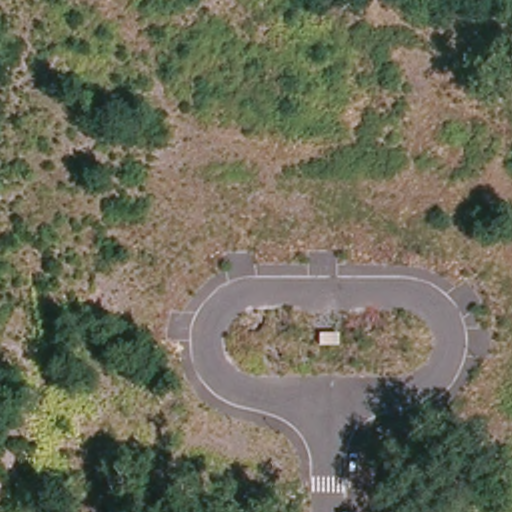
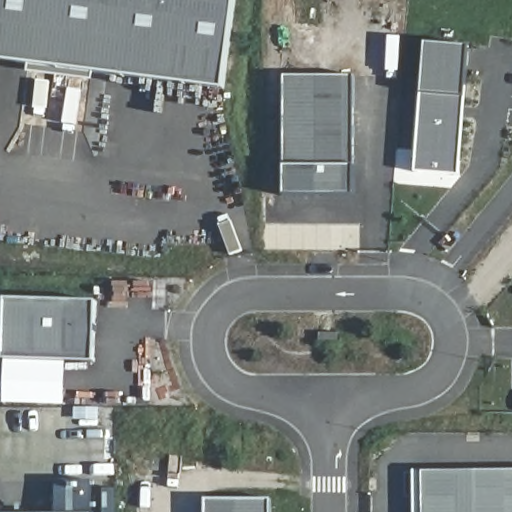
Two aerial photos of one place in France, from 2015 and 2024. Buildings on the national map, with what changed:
new [(0,60),(0,0),(236,0),(224,89),(0,60)]
new [(426,42),(470,46),(460,177),(415,174),(426,42)]
new [(355,195),(286,195),(286,74),(353,75),(355,195)]
new [(7,300),(100,302),(97,363),(6,361),(7,300)]
new [(512,512),(423,512),(422,471),(512,470),(512,512)]
new [(93,482),(93,512),(57,512),(57,481),(93,482)]
new [(272,512),(205,512),(205,500),(272,500),(272,512)]

